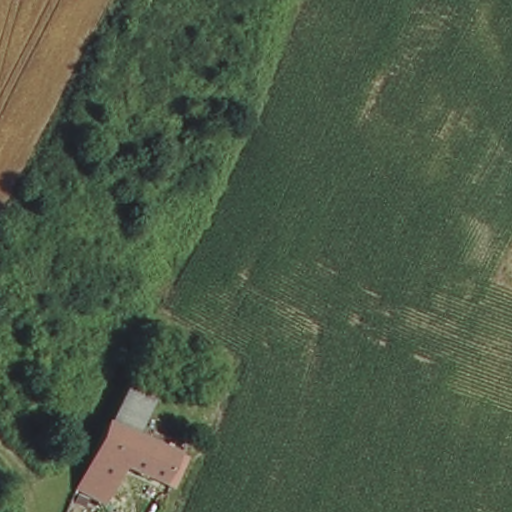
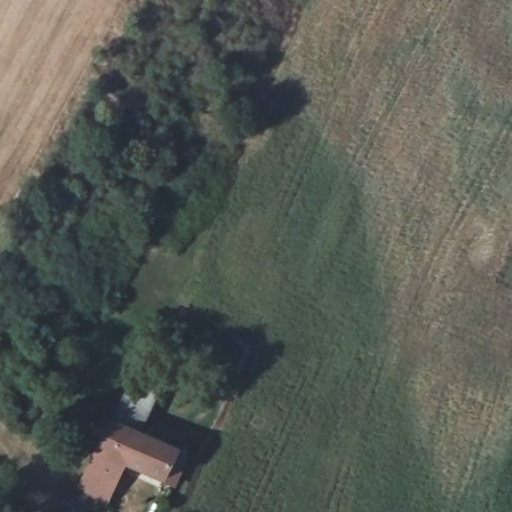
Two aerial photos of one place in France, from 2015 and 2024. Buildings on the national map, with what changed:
unchanged [(162,386),(137,436),(110,423),(130,383),(135,372),(162,386)]
unchanged [(181,471),(172,466),(163,480),(125,462),(103,500),(82,484),(107,432),(110,423),(137,436),(154,444),(187,460),(181,471)]

